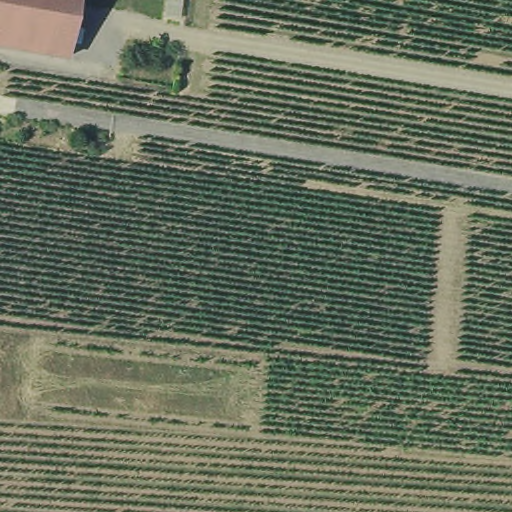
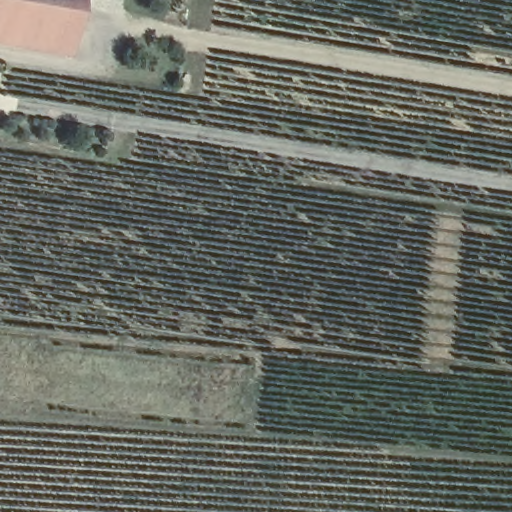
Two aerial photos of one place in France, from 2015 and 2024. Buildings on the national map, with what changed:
unchanged [(73,51),(0,38),(0,0),(82,0),(73,51)]

